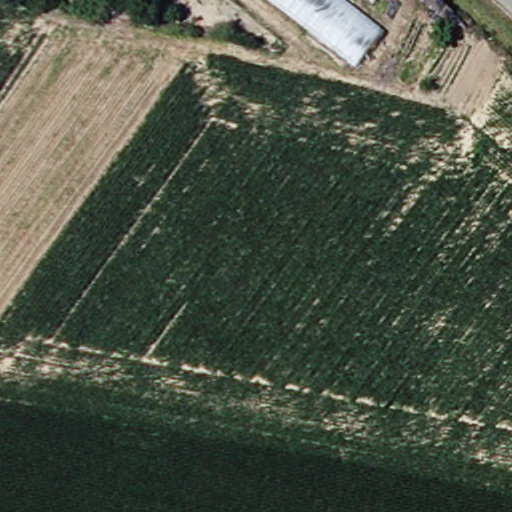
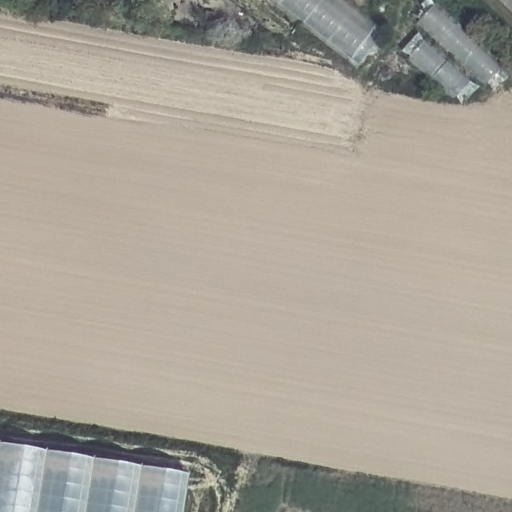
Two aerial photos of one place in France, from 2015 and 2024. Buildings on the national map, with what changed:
unchanged [(347,0),(386,31),(361,64),(280,0),(347,0)]
new [(184,475),(178,512),(0,512),(0,445),(184,475)]

